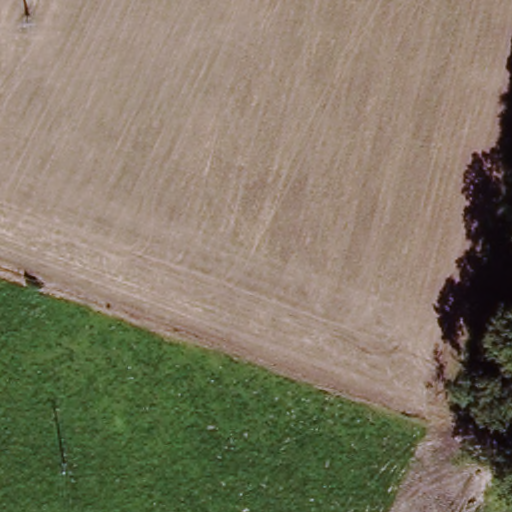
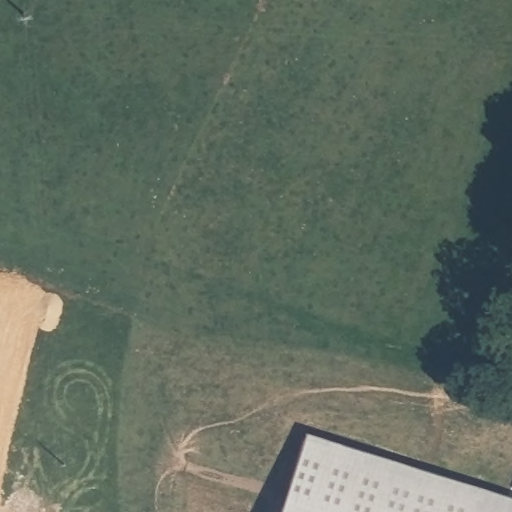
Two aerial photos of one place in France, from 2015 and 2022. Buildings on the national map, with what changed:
new [(512,497),(512,512),(285,512),(310,435),(512,497)]

